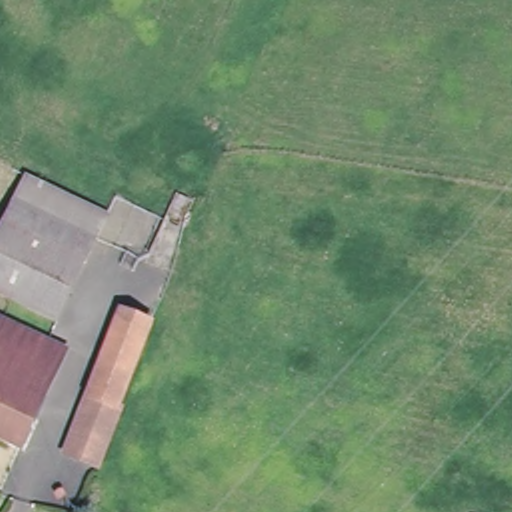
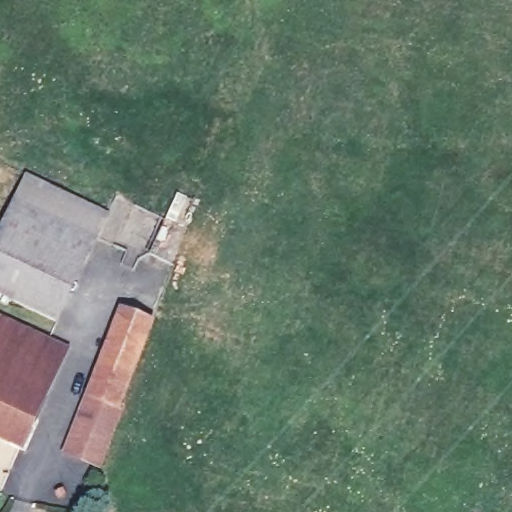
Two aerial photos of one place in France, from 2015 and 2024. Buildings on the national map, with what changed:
unchanged [(26,176),(107,213),(96,237),(15,199),(26,176)]
unchanged [(15,199),(96,237),(85,262),(4,223),(15,199)]
unchanged [(57,320),(0,293),(0,230),(4,223),(85,262),(57,320)]
unchanged [(121,309),(151,320),(119,405),(122,407),(100,465),(97,464),(67,452),(121,309)]
unchanged [(12,321),(12,320),(74,348),(29,448),(0,435),(0,347),(12,321)]
unchanged [(477,512),(478,509),(485,512),(477,512)]

